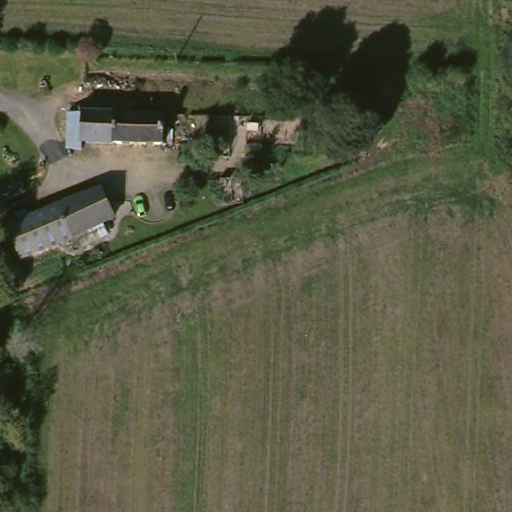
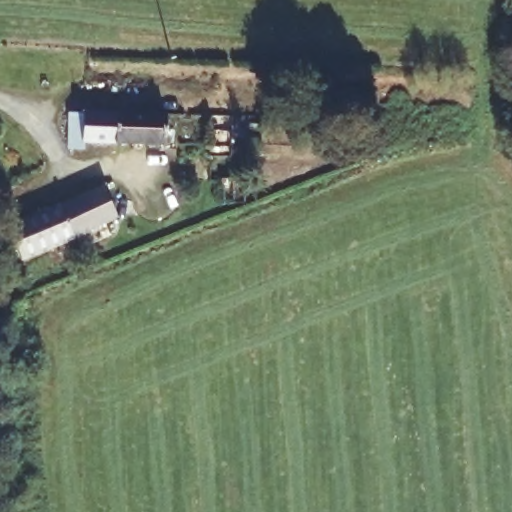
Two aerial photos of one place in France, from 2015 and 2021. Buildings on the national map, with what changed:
unchanged [(87,112),(164,112),(164,121),(164,144),(86,144),(85,148),(74,147),(74,115),(87,112)]
unchanged [(20,260),(7,231),(99,192),(114,222),(20,260)]

